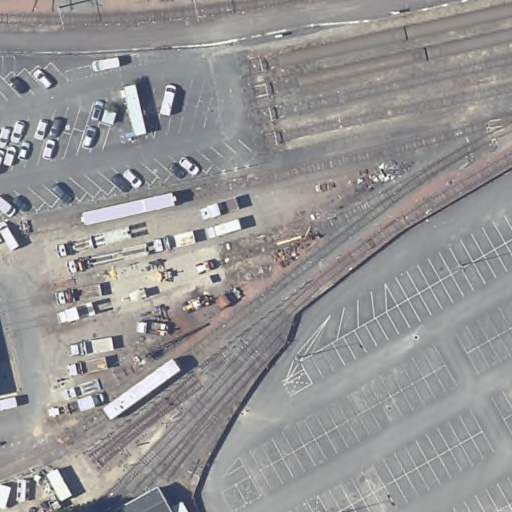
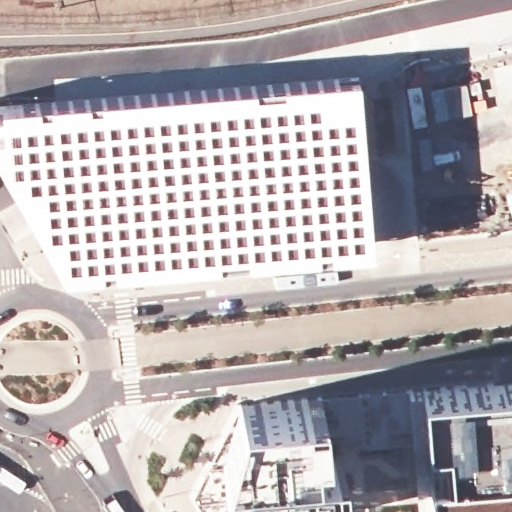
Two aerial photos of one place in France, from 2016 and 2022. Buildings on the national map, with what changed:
new [(0,168),(0,102),(357,74),(369,249),(62,276),(0,168)]
demolished [(135,84),(146,133),(134,136),(122,86),(135,84)]
new [(431,512),(430,503),(373,512),(225,512),(222,464),(242,404),(321,397),(323,405),(512,385),(512,512),(431,512)]
demolished [(177,511),(176,512),(118,512),(163,487),(177,511)]

